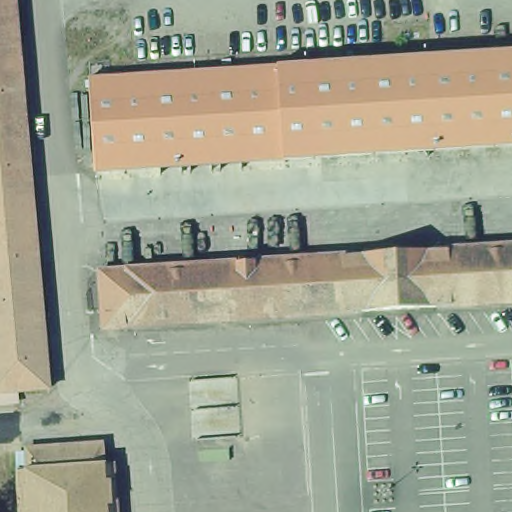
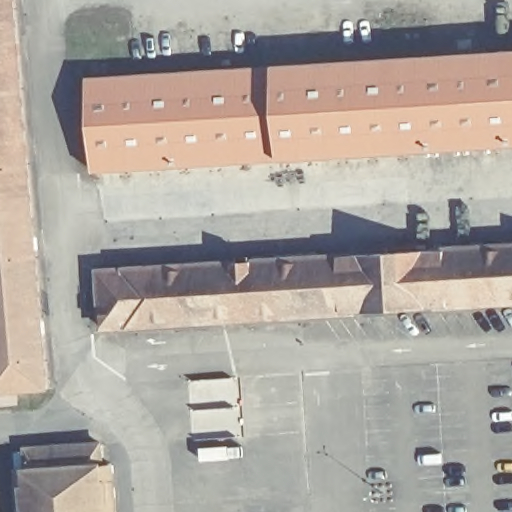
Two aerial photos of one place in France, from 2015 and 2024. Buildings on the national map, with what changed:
unchanged [(0,392),(0,0),(10,0),(44,388),(0,392)]
unchanged [(274,160),(269,64),(512,51),(512,147),(274,160)]
unchanged [(274,160),(90,171),(84,75),(269,64),(274,160)]
unchanged [(94,332),(90,275),(512,249),(512,307),(94,332)]
unchanged [(16,512),(13,471),(24,470),(23,448),(64,445),(97,443),(98,465),(110,464),(113,512),(16,512)]

